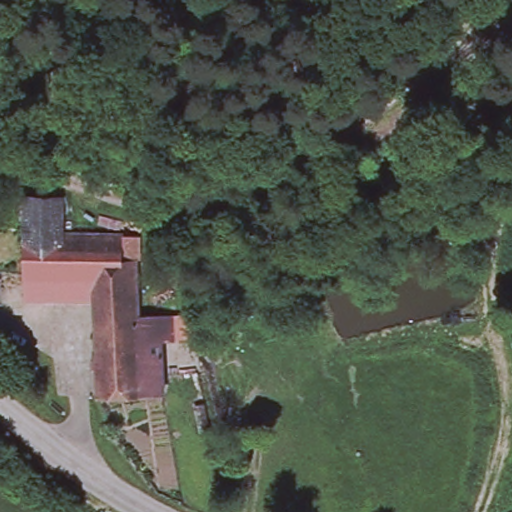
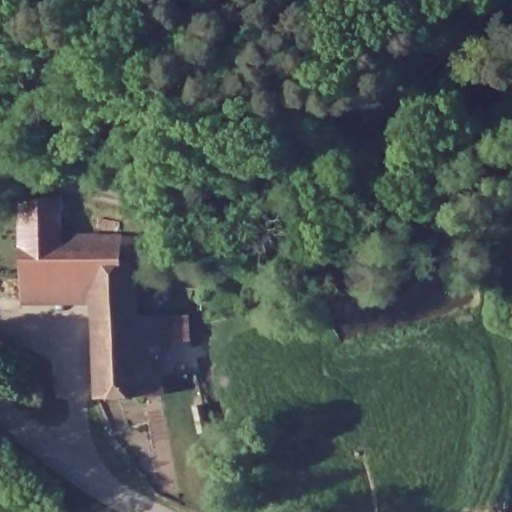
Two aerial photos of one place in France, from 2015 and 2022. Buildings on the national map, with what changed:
unchanged [(60,200),(61,238),(21,239),(21,201),(60,200)]
unchanged [(92,305),(22,306),(21,239),(61,238),(135,237),(136,320),(137,333),(92,334),(92,305)]
unchanged [(136,320),(172,319),(188,319),(189,343),(172,344),(160,344),(161,400),(96,401),(92,334),(137,333),(136,320)]

